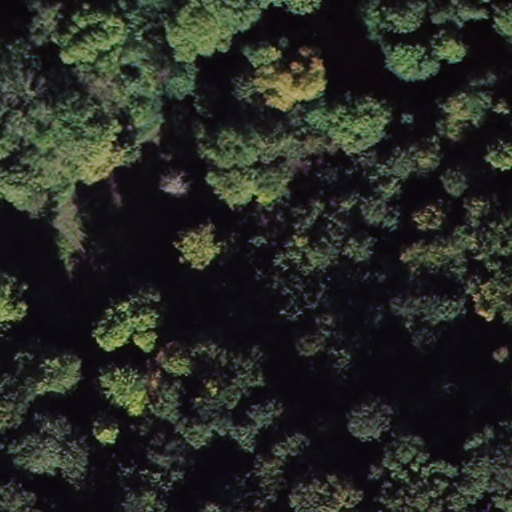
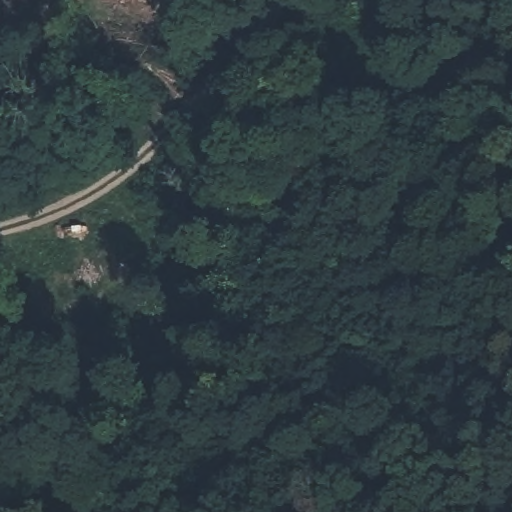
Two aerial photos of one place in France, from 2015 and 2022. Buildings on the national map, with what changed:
[]

